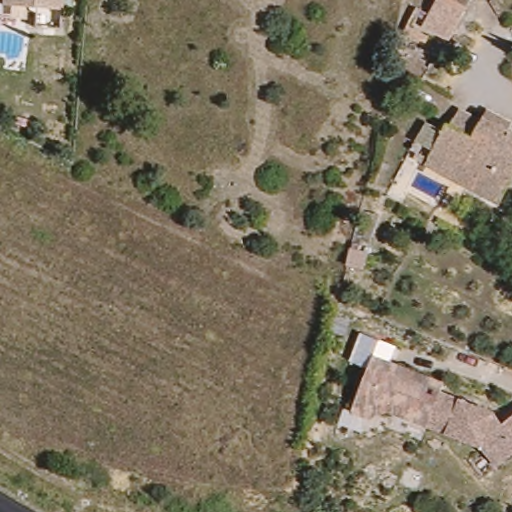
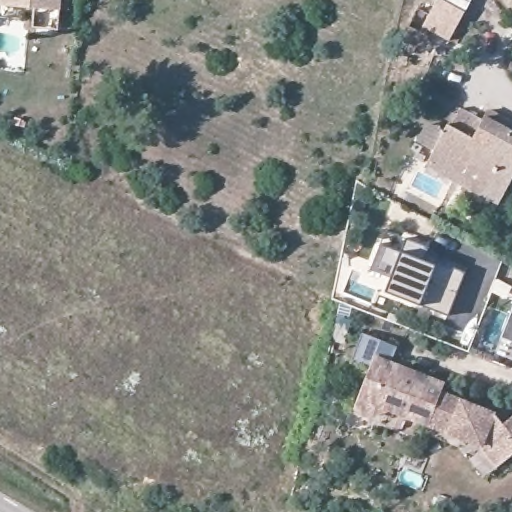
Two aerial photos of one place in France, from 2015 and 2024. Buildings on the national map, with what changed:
unchanged [(2,5),(2,0),(61,0),(60,13),(2,5)]
unchanged [(434,6),(437,0),(468,0),(471,1),(458,31),(433,19),(428,30),(413,23),(423,0),(434,6)]
unchanged [(485,192),(451,173),(446,183),(428,173),(437,156),(422,148),(430,133),(445,140),(451,129),(454,130),(464,113),(478,121),(512,140),(512,176),(511,178),(495,209),(480,201),(485,192)]
unchanged [(416,166),(420,160),(427,164),(424,170),(416,166)]
new [(419,304),(387,290),(392,278),(373,269),(382,245),(401,254),(407,239),(429,249),(424,262),(435,265),(436,261),(464,273),(449,315),(419,304)]
new [(512,299),(512,340),(495,333),(511,299),(512,299)]
unchanged [(349,364),(360,334),(394,347),(390,360),(444,382),(441,394),(499,418),(501,424),(512,416),(512,456),(497,468),(483,451),(408,424),(375,413),(371,421),(351,412),(366,369),(349,364)]

